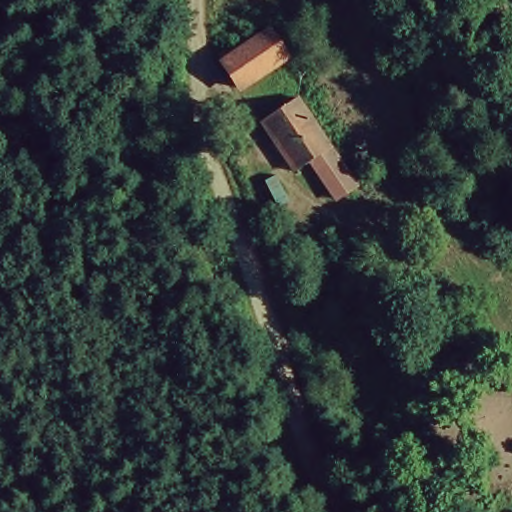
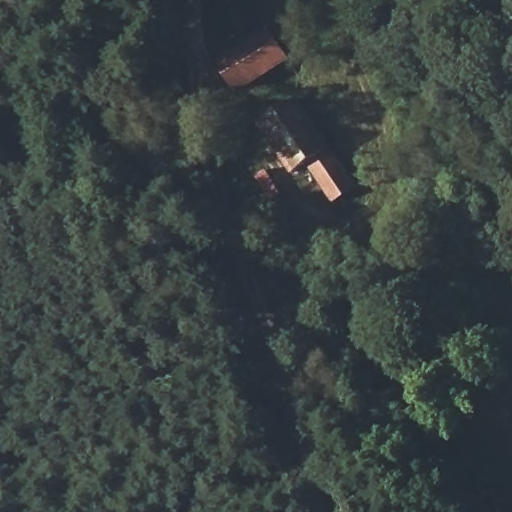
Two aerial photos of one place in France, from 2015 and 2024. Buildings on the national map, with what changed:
unchanged [(212,63),(270,26),(291,63),(232,97),(212,63)]
unchanged [(256,122),(299,98),(357,188),(331,204),(306,166),(290,175),(256,122)]

